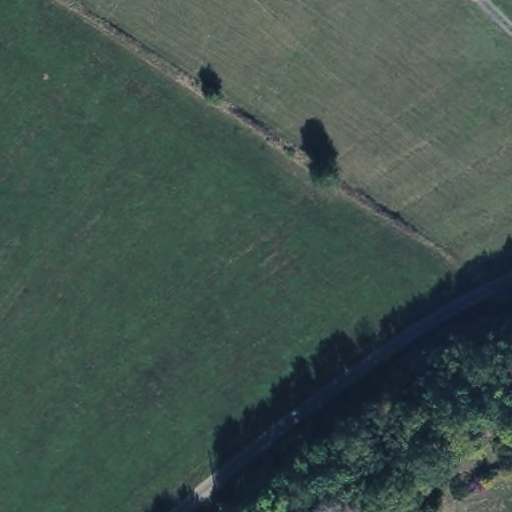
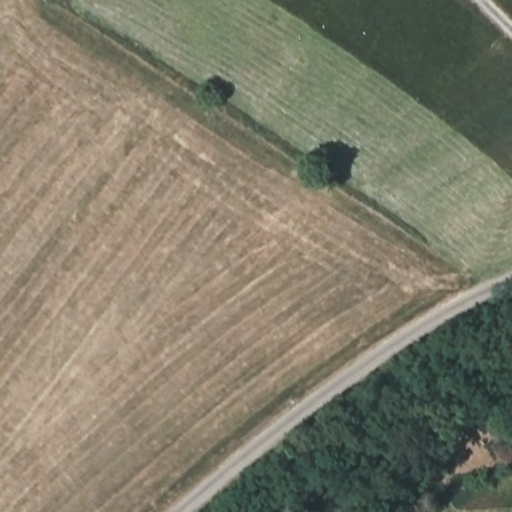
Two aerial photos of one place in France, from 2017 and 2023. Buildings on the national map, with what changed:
unchanged [(454,420),(421,435),(411,412),(445,398),(454,420)]

